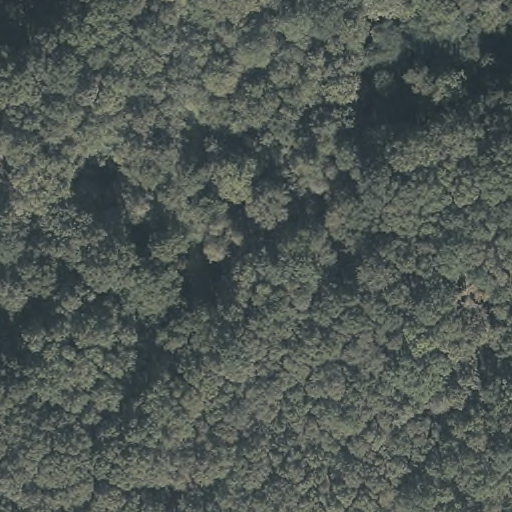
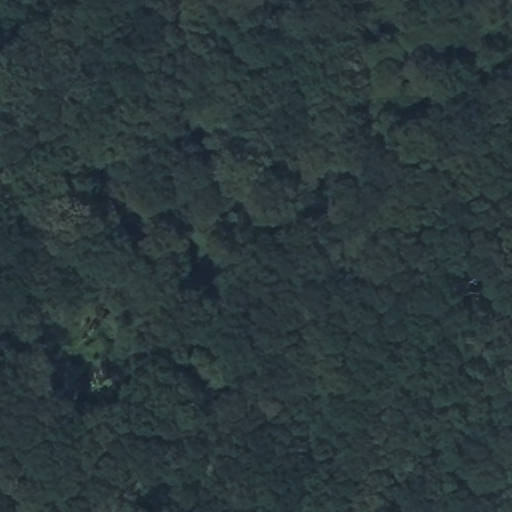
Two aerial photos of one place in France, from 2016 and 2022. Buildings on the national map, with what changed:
[]

